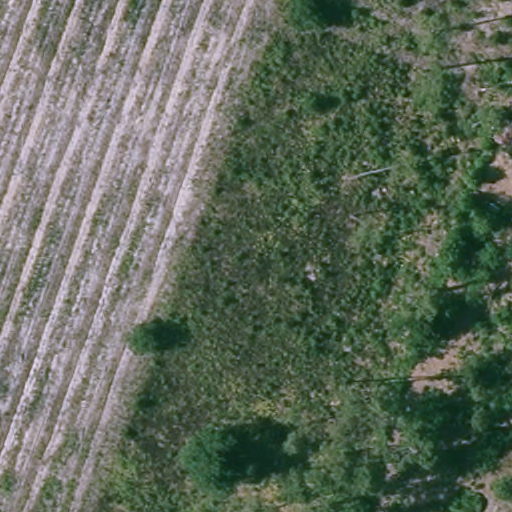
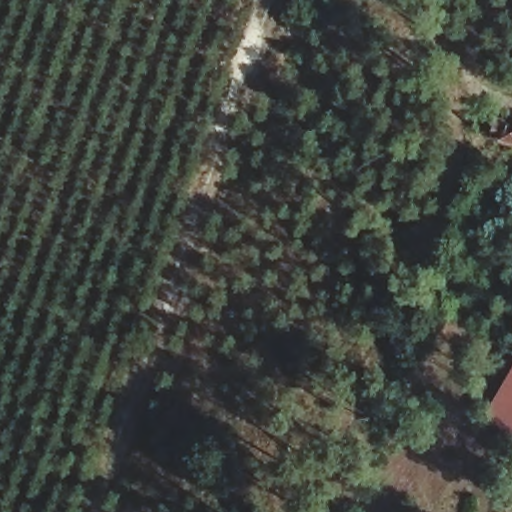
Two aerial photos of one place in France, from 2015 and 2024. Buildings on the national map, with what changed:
unchanged [(490,81),(500,47),(512,50),(512,87),(490,81)]
new [(486,416),(512,373),(512,432),(486,416)]

